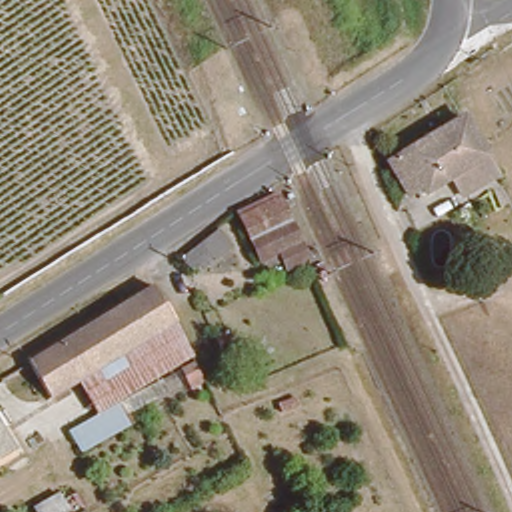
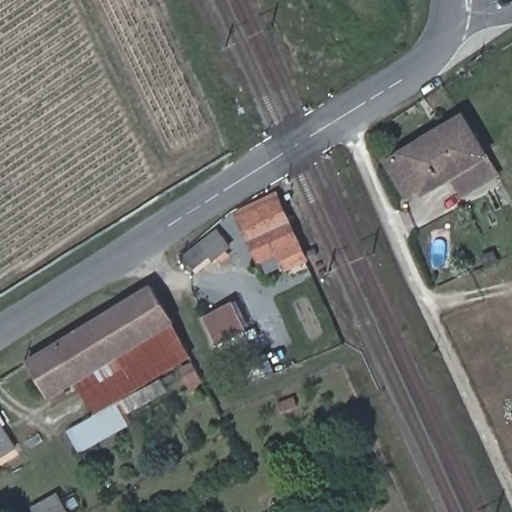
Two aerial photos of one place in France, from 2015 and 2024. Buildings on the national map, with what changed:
unchanged [(485,155),(425,190),(421,185),(405,194),(387,162),(462,118),(485,155)]
unchanged [(302,251),(283,259),(276,243),(256,252),(237,208),(275,191),(302,251)]
unchanged [(227,248),(210,263),(206,258),(188,272),(179,261),(214,232),(227,248)]
unchanged [(187,390),(180,364),(148,383),(154,395),(112,422),(117,429),(80,451),(66,429),(95,414),(77,379),(52,398),(26,358),(152,279),(191,353),(204,383),(187,390)]
new [(217,345),(202,316),(232,302),(245,332),(217,345)]
unchanged [(3,431),(12,444),(0,452),(0,426),(3,431)]
unchanged [(43,512),(63,499),(70,512),(43,512)]

